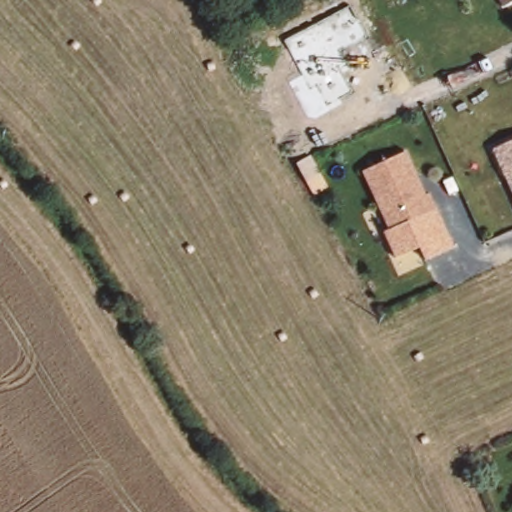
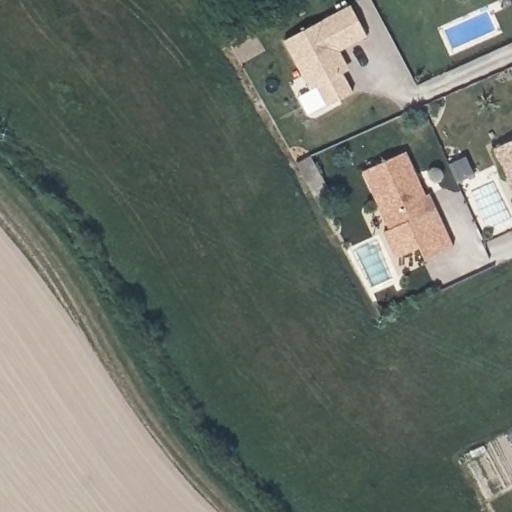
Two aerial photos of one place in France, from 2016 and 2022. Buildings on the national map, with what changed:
new [(342,74),(352,94),(327,107),(317,87),(310,91),(284,42),(350,6),(367,37),(339,52),(345,64),(349,70),(342,74)]
unchanged [(492,149),(512,140),(512,193),(503,173),(492,149)]
unchanged [(388,231),(362,171),(405,152),(425,196),(428,195),(435,210),(388,231)]
new [(315,196),(307,184),(297,165),(311,157),(321,175),(320,176),(327,190),(315,196)]

